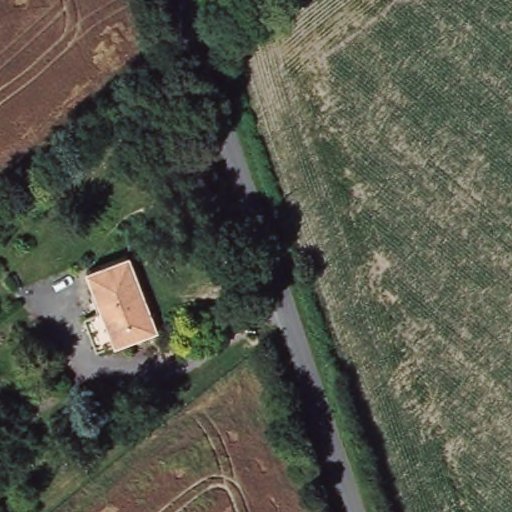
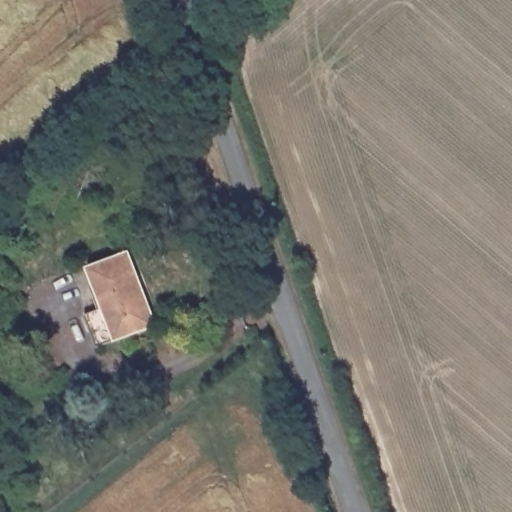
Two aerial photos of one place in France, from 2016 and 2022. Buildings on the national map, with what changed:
unchanged [(126,251),(155,326),(113,342),(84,267),(126,251)]

